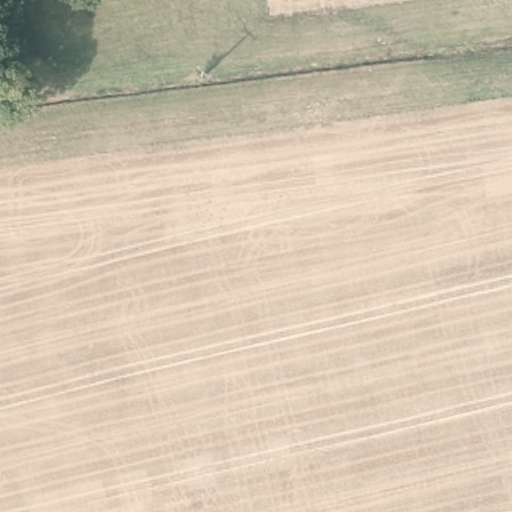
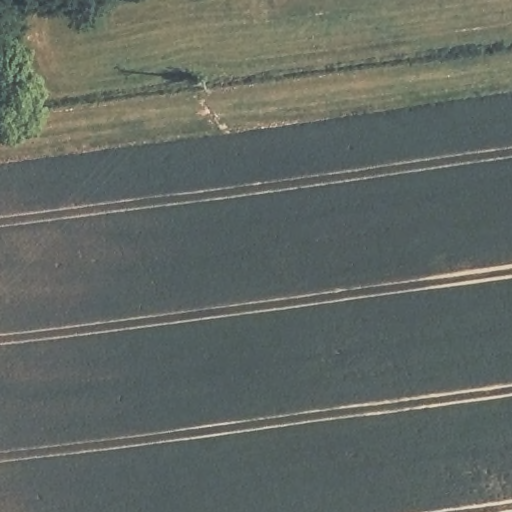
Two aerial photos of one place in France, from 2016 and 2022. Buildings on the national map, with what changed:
[]

